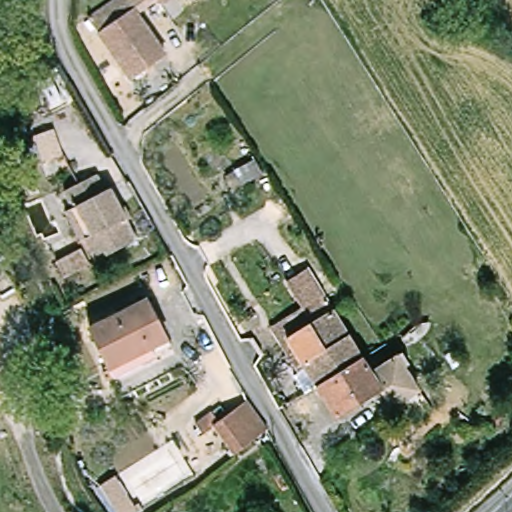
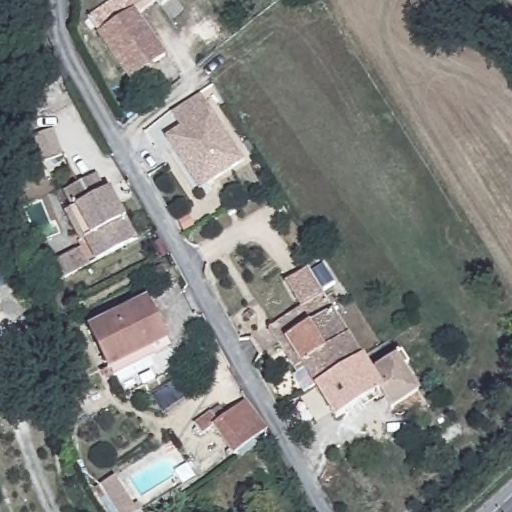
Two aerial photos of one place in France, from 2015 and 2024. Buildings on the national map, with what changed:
unchanged [(170,51),(134,76),(92,16),(115,0),(157,0),(141,10),(170,51)]
new [(181,164),(164,137),(179,127),(170,113),(200,94),(243,162),(206,185),(198,190),(181,164)]
unchanged [(260,174),(241,184),(233,169),(251,158),(260,174)]
unchanged [(73,193),(105,176),(114,192),(118,190),(146,240),(104,263),(93,241),(88,244),(72,213),(80,209),(73,193)]
unchanged [(98,268),(72,281),(63,266),(89,252),(98,268)]
unchanged [(290,278),(311,265),(326,290),(366,351),(375,366),(386,385),(340,414),(320,382),(314,385),(273,322),(306,302),(290,278)]
unchanged [(117,376),(112,365),(91,324),(150,296),(170,337),(175,347),(117,376)]
unchanged [(401,350),(406,346),(414,358),(409,362),(424,386),(397,403),(386,385),(375,366),(401,350)]
unchanged [(206,431),(198,422),(223,403),(231,413),(248,399),(270,426),(237,452),(216,424),(206,431)]
unchanged [(125,481),(141,506),(133,512),(126,512),(111,490),(125,481)]

